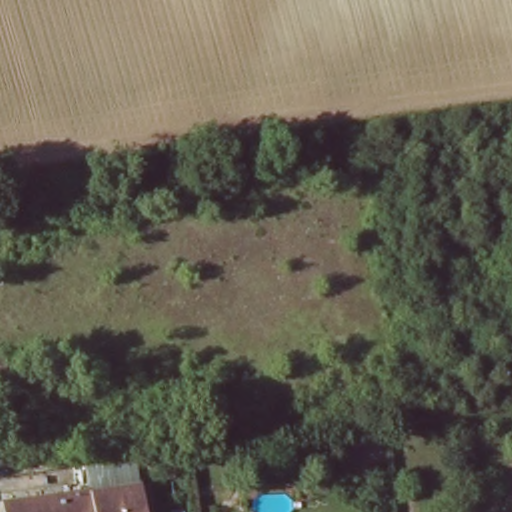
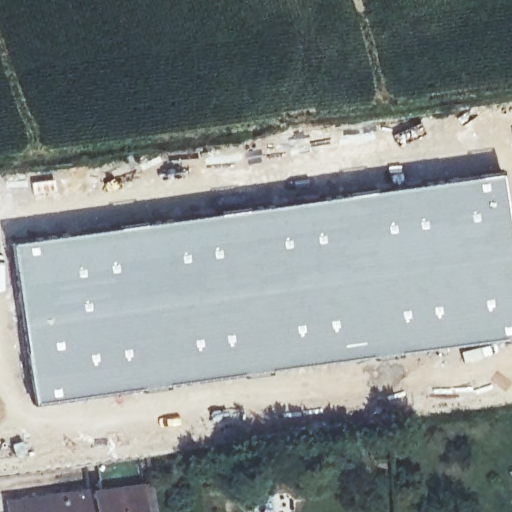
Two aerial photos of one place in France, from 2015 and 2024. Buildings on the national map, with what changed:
new [(502,171),(512,236),(512,336),(29,402),(7,239),(124,222),(502,171)]
unchanged [(7,512),(5,500),(7,500),(137,482),(141,512),(7,512)]

